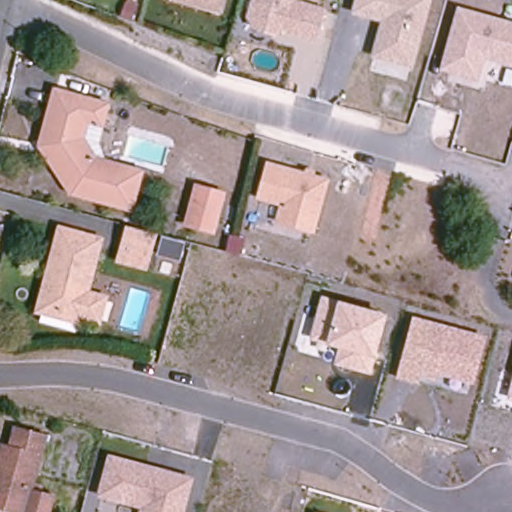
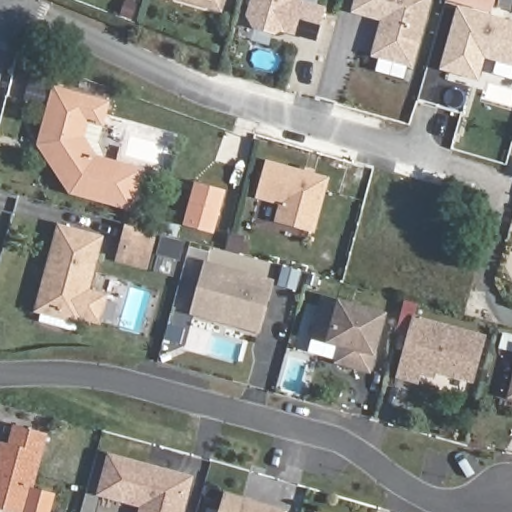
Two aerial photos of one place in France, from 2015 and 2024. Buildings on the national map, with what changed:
unchanged [(197,4),(183,0),(224,0),(221,11),(197,4)]
unchanged [(280,33),(275,37),(251,29),(246,15),(250,0),(297,0),(326,7),(317,41),(280,33)]
unchanged [(370,58),(378,21),(350,14),(353,0),(431,0),(413,69),(370,58)]
new [(467,6),(450,1),(450,0),(498,0),(495,13),(467,6)]
unchanged [(487,61),(482,82),(442,71),(460,6),(512,21),(512,68),(487,61)]
unchanged [(103,105),(97,125),(82,121),(77,138),(90,160),(135,173),(125,210),(67,194),(42,156),(48,152),(46,136),(39,134),(52,91),(103,105)]
unchanged [(316,235),(273,223),(278,206),(255,199),(266,160),(331,178),(316,235)]
unchanged [(186,227),(196,188),(223,195),(213,234),(186,227)]
unchanged [(36,323),(39,309),(61,225),(106,237),(93,291),(107,295),(102,321),(79,317),(76,332),(36,323)]
unchanged [(155,235),(146,267),(119,260),(127,228),(155,235)]
new [(191,315),(206,262),(275,281),(261,334),(191,315)]
unchanged [(375,357),(370,374),(336,366),(341,348),(327,344),(310,339),(321,295),(341,300),(387,312),(375,357)]
unchanged [(486,335),(475,383),(437,373),(435,379),(421,377),(417,384),(396,379),(412,316),(486,335)]
unchanged [(506,400),(512,379),(512,401),(506,400)]
unchanged [(0,445),(10,447),(15,428),(46,437),(31,490),(57,497),(52,512),(19,512),(0,507),(0,445)]
unchanged [(184,512),(136,512),(137,507),(96,495),(108,453),(194,476),(184,512)]
new [(224,493),(288,511),(288,512),(219,512),(224,493)]

